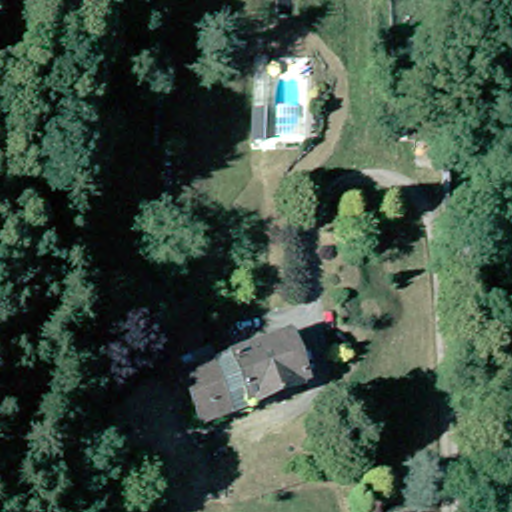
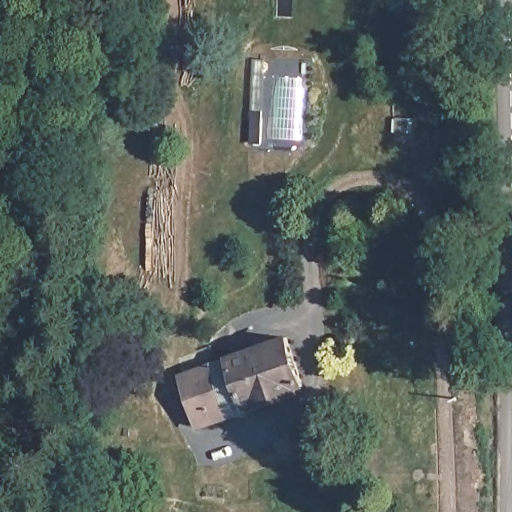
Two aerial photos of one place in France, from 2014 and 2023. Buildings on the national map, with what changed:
unchanged [(306,393),(202,424),(188,377),(184,364),(215,350),(221,367),(292,344),(306,393)]

